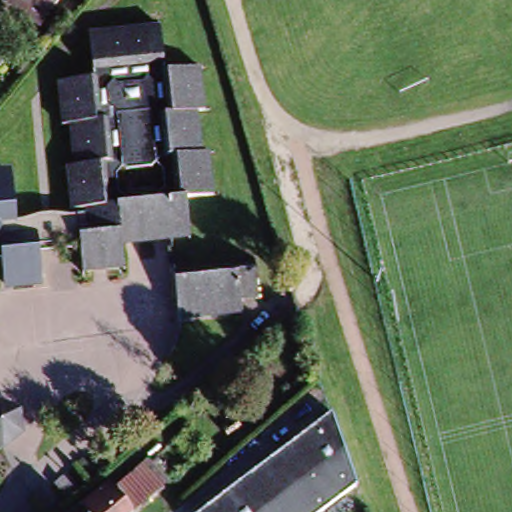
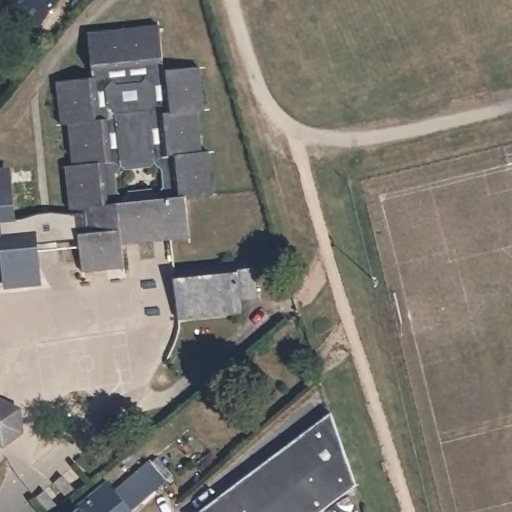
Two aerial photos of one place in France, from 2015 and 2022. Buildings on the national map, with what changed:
unchanged [(6,0),(58,0),(39,25),(6,0)]
unchanged [(128,263),(86,268),(84,241),(83,228),(92,227),(90,208),(80,209),(76,166),(83,165),(78,124),(71,125),(67,82),(98,78),(93,38),(165,31),(169,71),(199,67),(203,110),(197,111),(201,153),(208,152),(213,195),(190,198),(194,234),(175,236),(126,241),(128,263)]
unchanged [(8,61),(0,71),(0,55),(8,61)]
unchanged [(90,208),(92,227),(83,228),(84,241),(41,245),(45,281),(39,282),(39,285),(16,288),(15,284),(10,285),(7,258),(0,259),(0,172),(8,171),(9,175),(14,174),(19,221),(27,220),(43,213),(56,211),(74,215),(81,214),(80,209),(90,208)]
unchanged [(236,272),(236,265),(254,263),(259,304),(240,306),(241,313),(178,319),(174,278),(236,272)]
unchanged [(23,409),(26,432),(8,445),(0,442),(0,401),(3,399),(23,409)]
unchanged [(361,485),(326,512),(204,512),(336,412),(361,485)]
unchanged [(112,482),(120,491),(155,462),(171,481),(134,512),(78,512),(112,482)]

